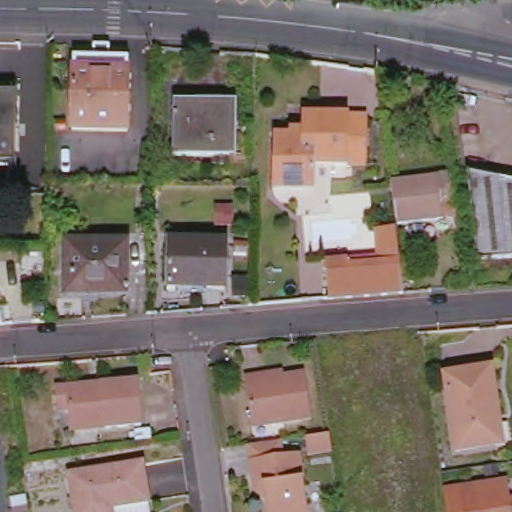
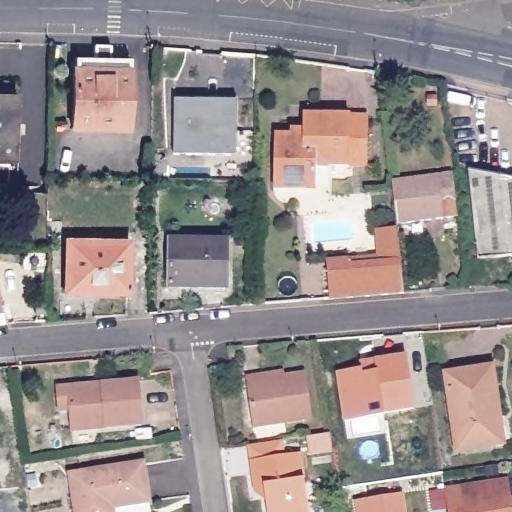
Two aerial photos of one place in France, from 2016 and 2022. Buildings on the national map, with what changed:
unchanged [(74,62),(93,62),(93,50),(110,51),(110,62),(129,62),(127,134),(72,134),(74,62)]
unchanged [(0,97),(17,97),(15,185),(0,185),(0,97)]
unchanged [(174,153),(175,101),(194,101),(194,106),(230,106),(229,154),(174,153)]
unchanged [(290,136),(290,127),(302,127),(302,116),(367,117),(365,173),(350,172),(350,164),(330,164),(330,186),(274,185),(274,136),(290,136)]
unchanged [(482,252),(472,166),(512,173),(512,249),(482,252)]
unchanged [(392,181),(452,174),(457,205),(441,207),(442,217),(397,224),(392,181)]
unchanged [(326,261),(350,258),(379,257),(377,230),(397,228),(405,291),(329,297),(326,261)]
unchanged [(169,286),(169,240),(227,240),(226,287),(169,286)]
unchanged [(67,242),(127,242),(127,292),(66,292),(67,242)]
new [(360,372),(359,362),(373,359),(405,355),(414,407),(383,411),(384,414),(345,420),(337,370),(360,367),(360,372)]
unchanged [(496,442),(456,448),(445,371),(491,365),(499,412),(503,441),(496,442)]
unchanged [(310,416),(250,425),(244,375),(260,372),(282,370),(283,374),(303,372),(310,416)]
unchanged [(69,427),(67,413),(57,415),(54,392),(65,391),(85,387),(86,393),(98,392),(97,386),(133,380),(140,423),(105,428),(70,433),(69,427)]
unchanged [(330,432),(332,452),(317,455),(314,433),(330,432)]
unchanged [(282,447),(284,462),(300,460),(308,512),(265,512),(262,493),(254,494),(249,452),(282,447)]
unchanged [(140,507),(141,512),(76,512),(70,472),(142,461),(149,498),(150,506),(140,507)]
unchanged [(510,502),(512,502),(512,512),(463,512),(460,491),(508,483),(510,502)]
new [(354,500),(402,493),(405,512),(356,512),(354,500)]

